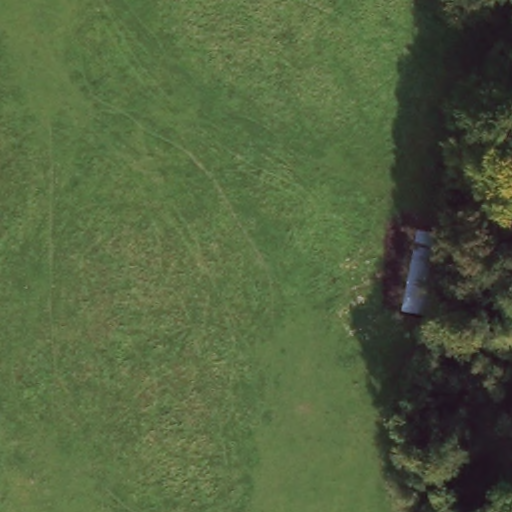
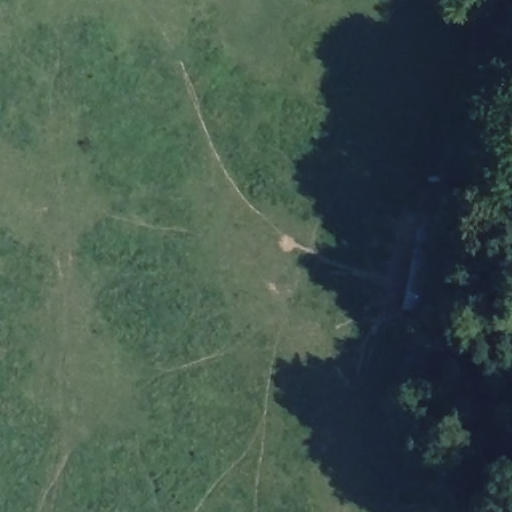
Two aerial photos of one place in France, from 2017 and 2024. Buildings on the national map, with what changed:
unchanged [(440,227),(425,310),(398,308),(414,227),(440,227)]

